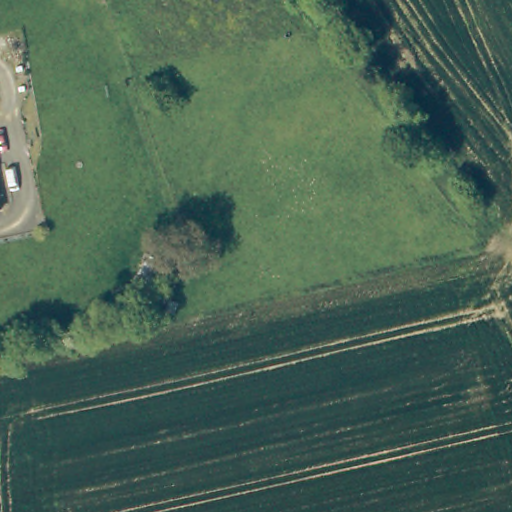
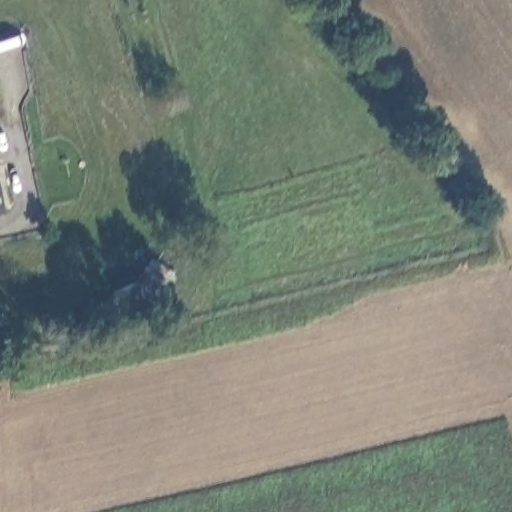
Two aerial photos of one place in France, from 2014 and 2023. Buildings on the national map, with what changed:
unchanged [(145,296),(144,296),(131,284),(148,261),(170,274),(169,283),(149,301),(145,296)]

